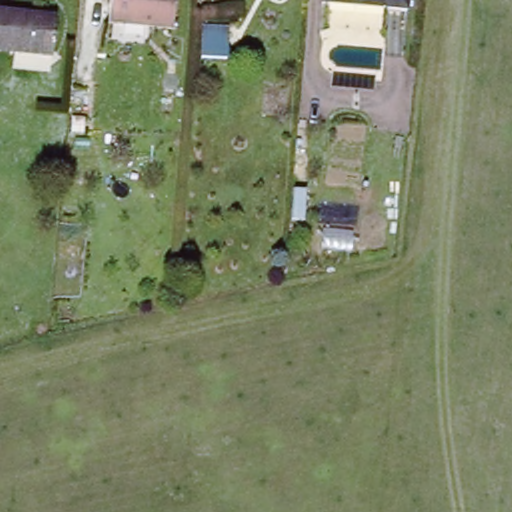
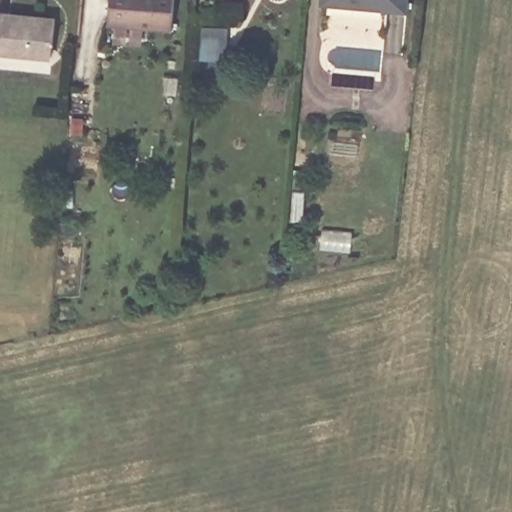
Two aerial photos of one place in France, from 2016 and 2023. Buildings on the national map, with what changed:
unchanged [(173,0),(171,23),(110,19),(111,0),(173,0)]
unchanged [(363,0),(407,0),(406,4),(363,0)]
unchanged [(55,48),(0,48),(0,10),(55,11),(55,48)]
unchanged [(202,64),(203,43),(203,32),(227,32),(227,44),(227,64),(202,64)]

